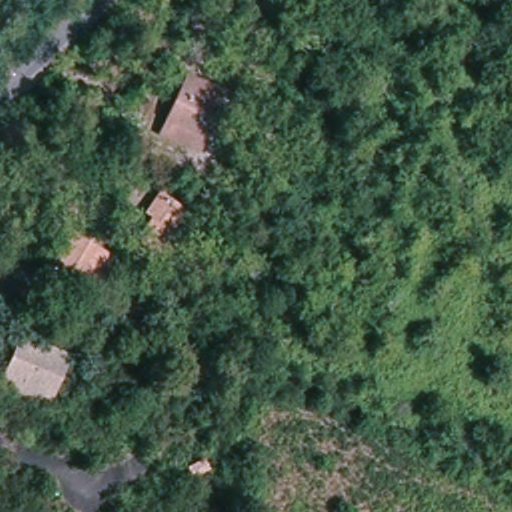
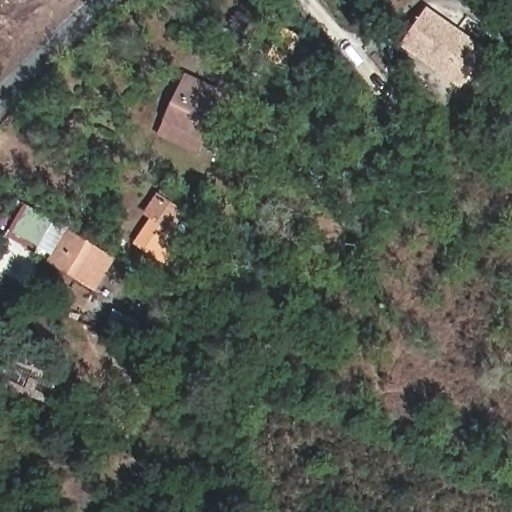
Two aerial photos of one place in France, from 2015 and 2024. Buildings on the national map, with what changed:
new [(400,47),(428,7),(487,50),(461,88),(400,47)]
unchanged [(161,137),(185,74),(220,89),(196,153),(161,137)]
unchanged [(173,245),(167,260),(130,241),(144,209),(136,205),(146,185),(171,204),(169,211),(162,221),(179,229),(173,245)]
unchanged [(44,245),(54,227),(104,256),(90,286),(69,275),(38,256),(44,245)]
unchanged [(88,298),(105,301),(101,318),(84,312),(88,298)]
unchanged [(18,398),(2,392),(22,340),(69,357),(52,403),(34,396),(31,403),(18,398)]
unchanged [(180,453),(195,445),(201,455),(185,463),(180,453)]

